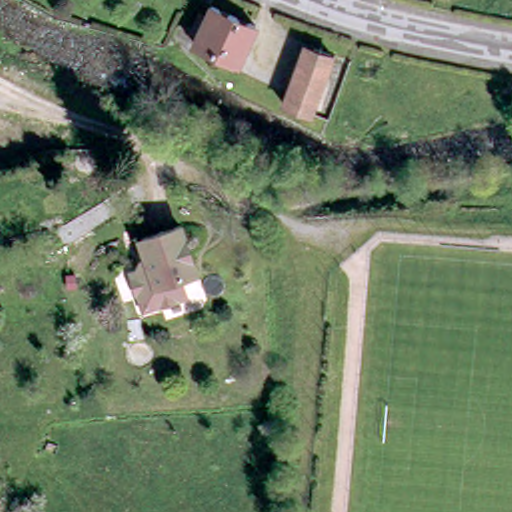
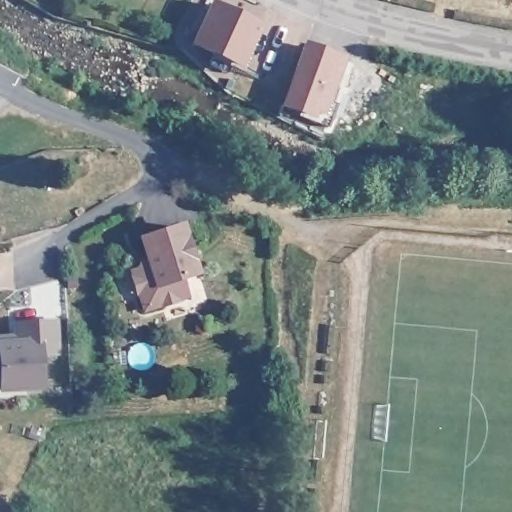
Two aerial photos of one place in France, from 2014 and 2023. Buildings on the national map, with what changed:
unchanged [(238,76),(220,68),(224,59),(198,47),(203,38),(196,35),(204,15),(210,19),(216,9),(260,27),(238,76)]
unchanged [(313,115),(287,105),(308,47),(334,56),(313,115)]
unchanged [(183,231),(197,275),(185,280),(191,300),(156,311),(148,315),(135,276),(153,271),(145,244),(152,241),(183,231)]
new [(61,356),(43,357),(45,389),(0,392),(0,334),(13,332),(13,322),(59,318),(61,356)]

